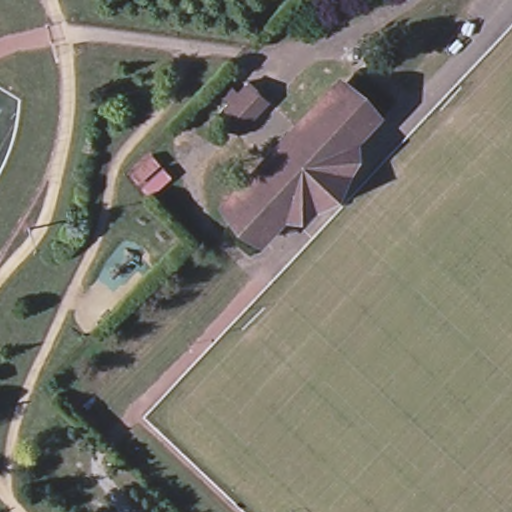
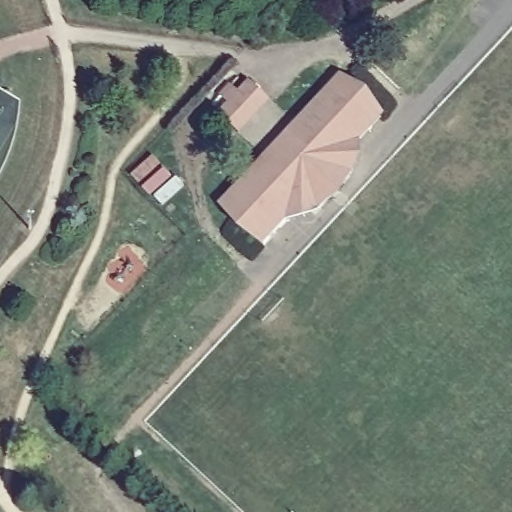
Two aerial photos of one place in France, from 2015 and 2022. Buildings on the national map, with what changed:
unchanged [(258,160),(207,114),(237,80),(288,127),(332,81),(368,115),(347,138),(340,171),(306,209),(275,216),(251,242),(214,208),(258,160)]

